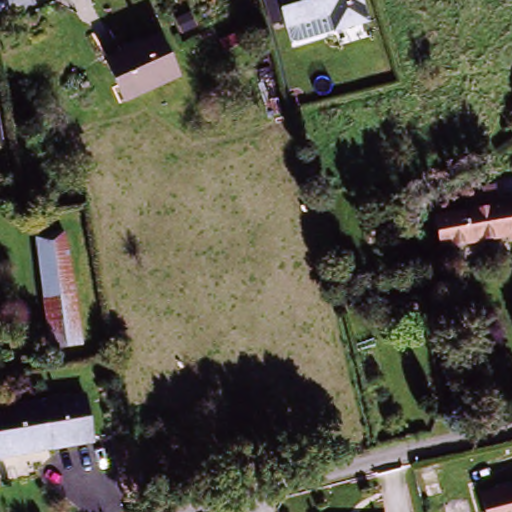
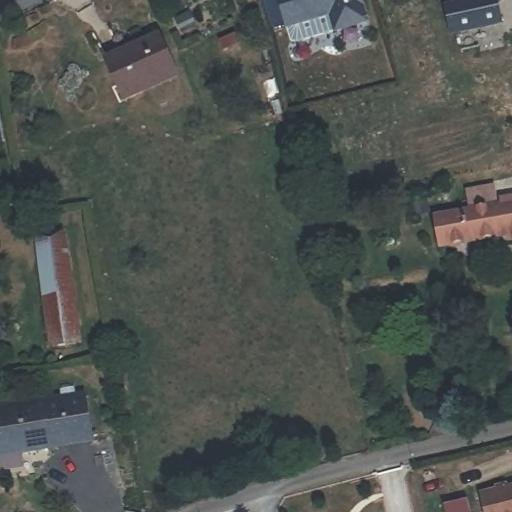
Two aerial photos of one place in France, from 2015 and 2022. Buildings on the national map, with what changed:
unchanged [(335,24),(297,34),(291,34),(282,0),(363,0),(367,15),(335,24)]
new [(450,35),(444,5),(450,4),(450,0),(498,0),(503,24),(450,35)]
unchanged [(162,32),(179,73),(126,95),(111,55),(162,32)]
unchanged [(470,214),(467,200),(496,194),(498,209),(512,206),(512,247),(506,248),(504,238),(448,250),(442,219),(470,214)]
unchanged [(60,230),(81,343),(55,349),(35,235),(60,230)]
unchanged [(91,436),(0,457),(0,405),(79,387),(91,436)]
unchanged [(500,488),(498,482),(510,479),(512,485),(512,512),(492,512),(486,491),(500,488)]

